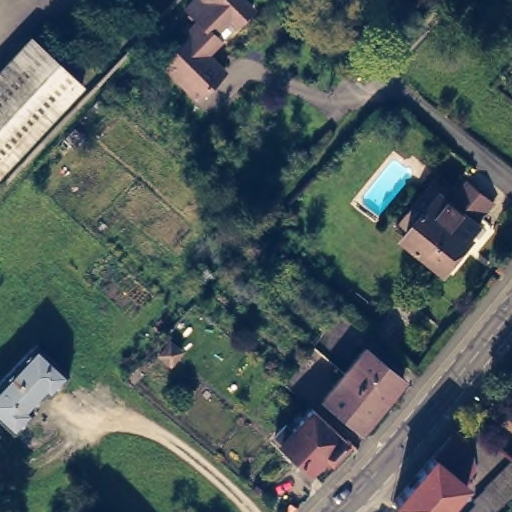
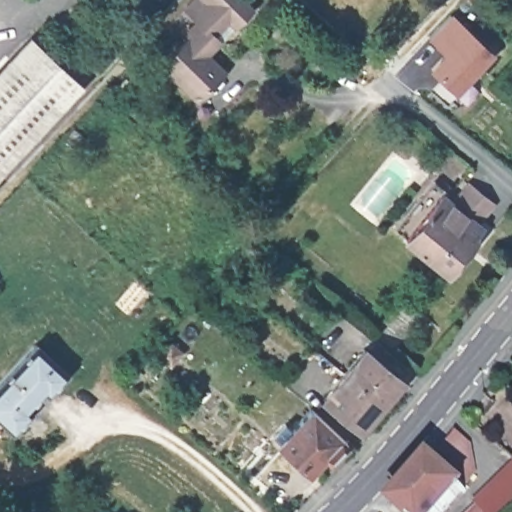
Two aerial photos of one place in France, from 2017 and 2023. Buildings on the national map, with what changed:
unchanged [(206,50),(224,67),(197,95),(162,60),(201,20),(185,4),(188,0),(248,0),(252,4),(206,50)]
unchanged [(477,0),(479,1),(474,7),(466,0),(477,0)]
new [(457,92),(432,70),(447,55),(429,37),(450,15),(492,55),(457,92)]
unchanged [(0,173),(0,71),(31,37),(82,85),(0,173)]
unchanged [(120,87),(124,81),(132,87),(127,93),(120,87)]
unchanged [(431,207),(442,195),(445,197),(452,203),(464,214),(480,194),(494,204),(477,224),(481,227),(472,237),(475,240),(447,273),(405,239),(406,238),(395,230),(420,199),(431,207)]
unchanged [(404,297),(423,313),(392,351),(372,335),(404,297)]
unchanged [(69,369),(49,390),(45,386),(30,403),(33,407),(14,427),(0,415),(0,376),(35,338),(69,369)]
unchanged [(181,352),(170,365),(160,355),(170,343),(181,352)]
unchanged [(365,349),(403,380),(382,405),(344,373),(365,349)]
unchanged [(382,405),(361,430),(323,398),(344,373),(382,405)]
unchanged [(342,437),(325,455),(320,450),(304,465),(270,432),(274,428),(279,432),(307,404),(342,437)]
unchanged [(445,440),(457,450),(458,451),(459,452),(464,480),(464,481),(464,482),(463,482),(454,493),(455,495),(453,497),(456,500),(454,503),(450,500),(440,512),(383,512),(445,440)]
unchanged [(477,505),(473,501),(512,463),(512,507),(507,512),(470,512),(477,505)]

